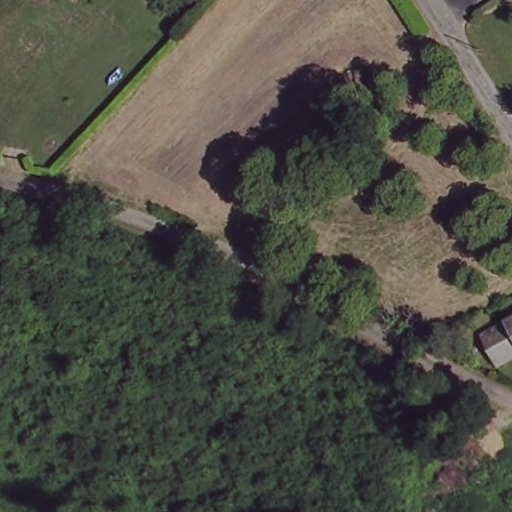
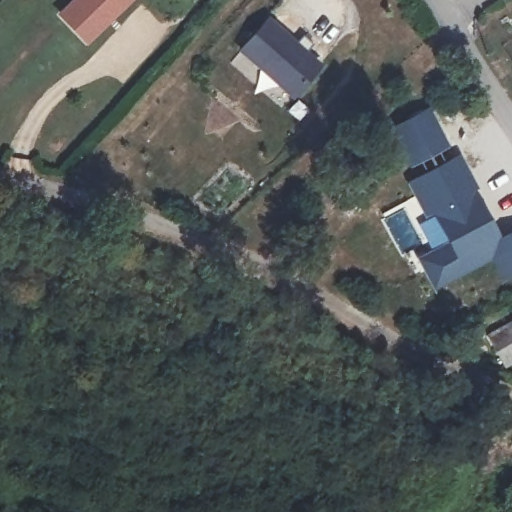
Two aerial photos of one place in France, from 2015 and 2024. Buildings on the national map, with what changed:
new [(69,0),(131,0),(86,43),(55,13),(69,0)]
new [(291,98),(237,52),(266,16),(321,64),(291,98)]
new [(405,168),(384,128),(427,107),(447,146),(405,168)]
new [(499,275),(487,258),(432,285),(424,270),(429,268),(425,260),(432,258),(430,252),(448,243),(431,211),(423,213),(408,182),(454,159),(460,173),(467,171),(474,188),(472,190),(501,243),(512,238),(512,269),(499,275)]
unchanged [(503,372),(485,339),(512,323),(512,366),(503,372)]

